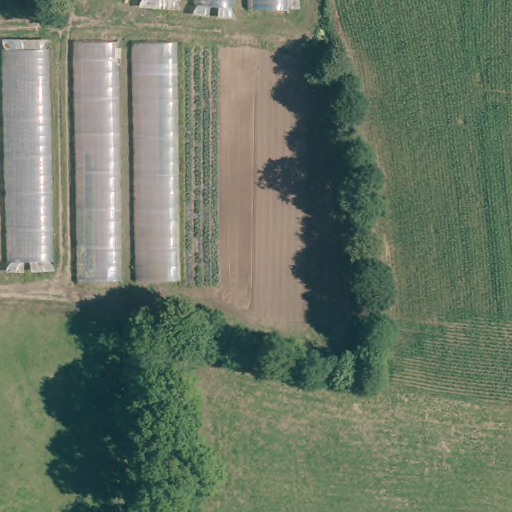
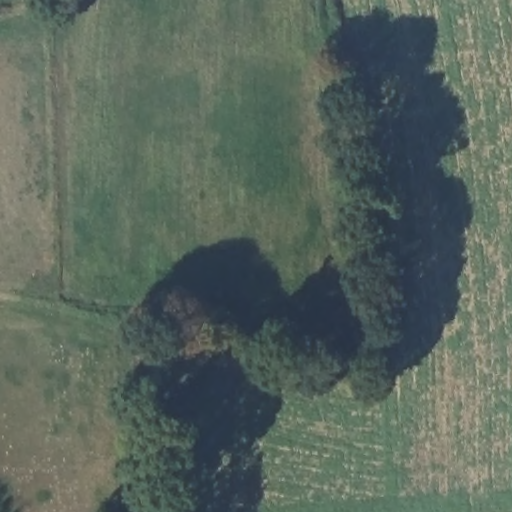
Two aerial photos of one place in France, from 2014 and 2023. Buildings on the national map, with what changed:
demolished [(162,0),(293,0),(292,9),(162,0)]
demolished [(50,42),(60,263),(0,262),(0,43),(50,42)]
demolished [(78,42),(179,42),(184,279),(85,283),(78,42)]

